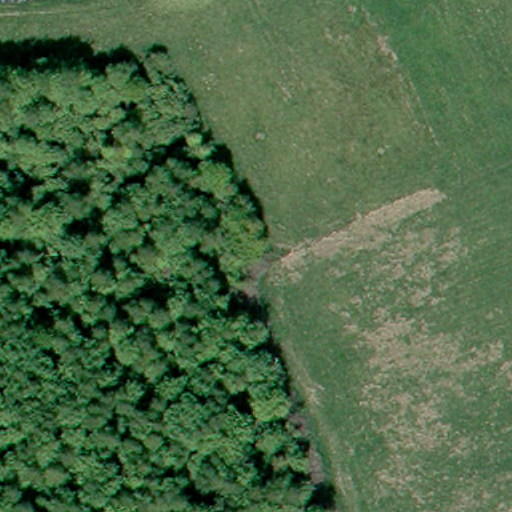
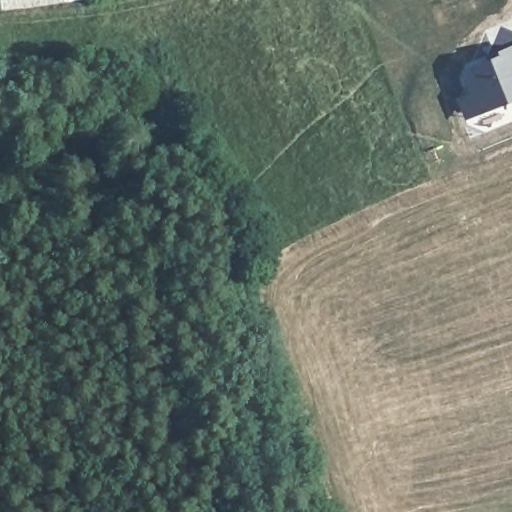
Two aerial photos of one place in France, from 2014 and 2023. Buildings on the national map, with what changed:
new [(466,119),(457,97),(467,93),(462,77),(467,69),(495,56),(494,51),(512,43),(512,101),(466,119)]

